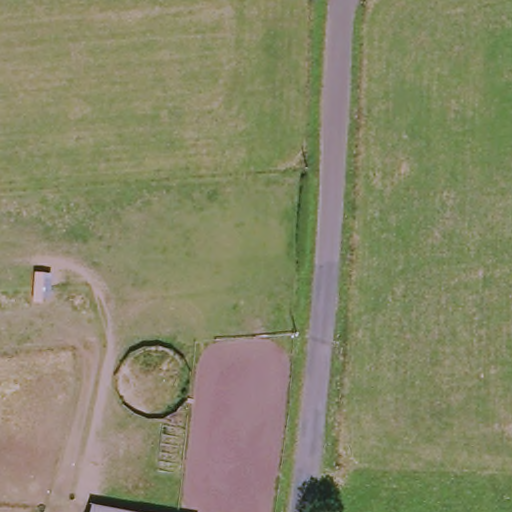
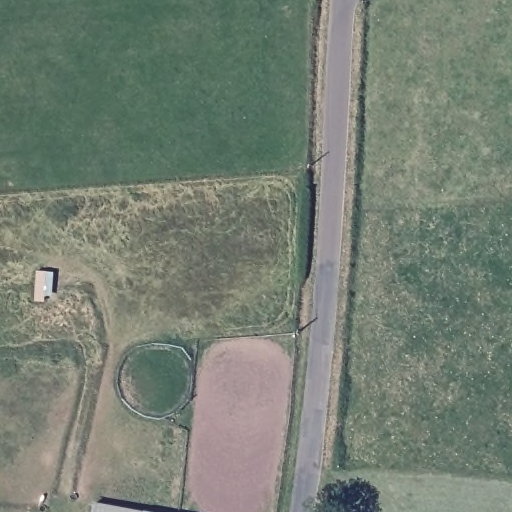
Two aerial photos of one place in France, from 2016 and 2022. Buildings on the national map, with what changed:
unchanged [(95,512),(96,505),(132,512),(95,512)]

